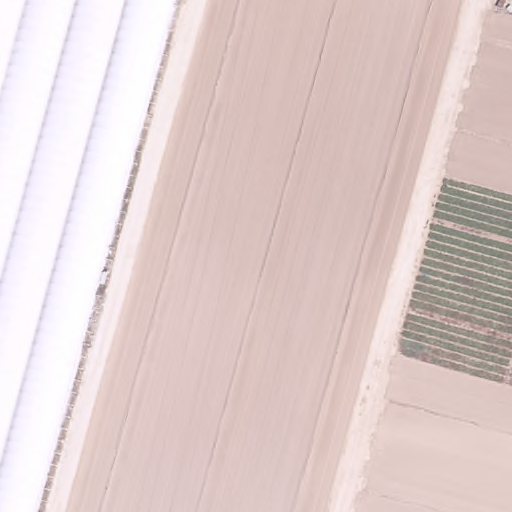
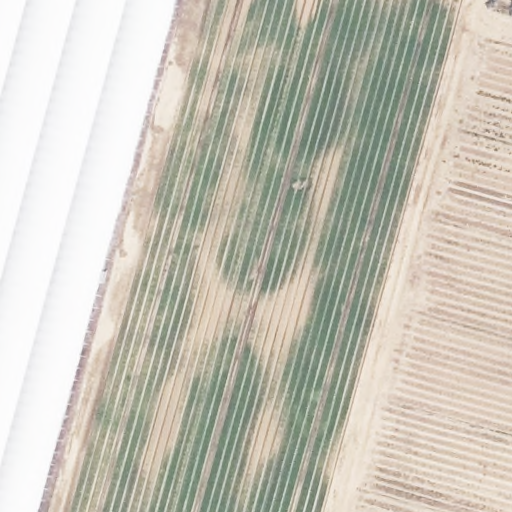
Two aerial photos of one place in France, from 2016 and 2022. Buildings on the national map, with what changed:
unchanged [(35,512),(0,512),(0,0),(174,0),(35,512)]

